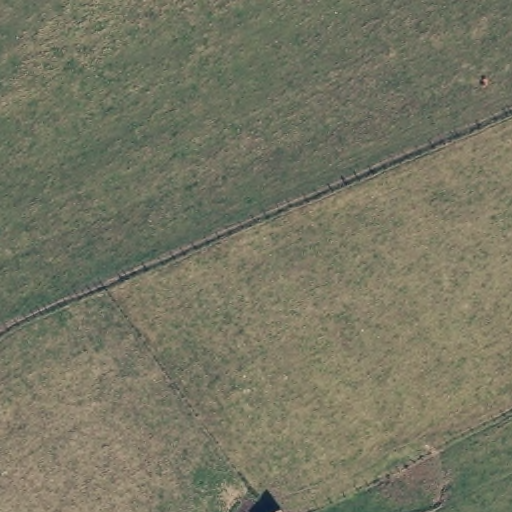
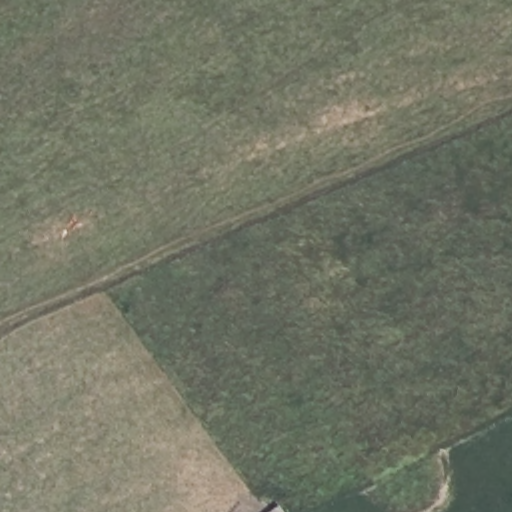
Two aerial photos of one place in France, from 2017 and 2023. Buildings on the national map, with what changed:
unchanged [(284,512),(279,512),(282,510),(284,512)]

